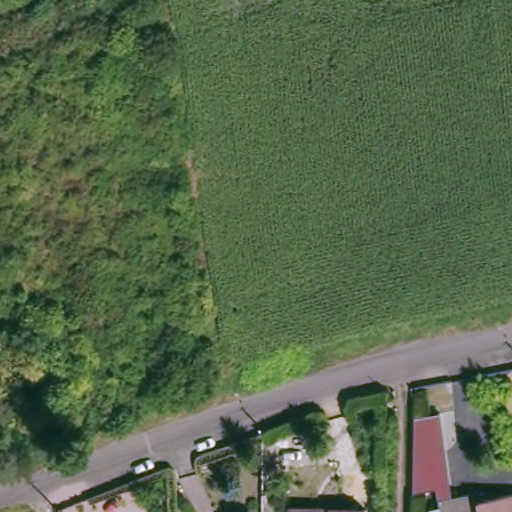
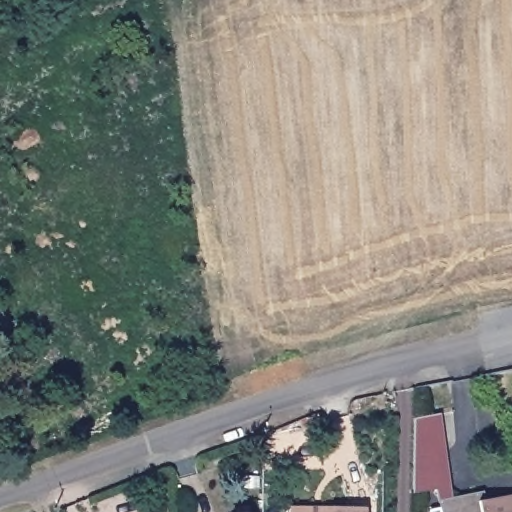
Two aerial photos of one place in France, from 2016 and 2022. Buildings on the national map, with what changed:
unchanged [(453,499),(444,500),(441,501),(438,488),(415,492),(415,420),(442,416),(453,499)]
unchanged [(490,506),(490,502),(512,498),(512,512),(427,512),(427,503),(444,500),(482,493),(485,506),(490,506)]

